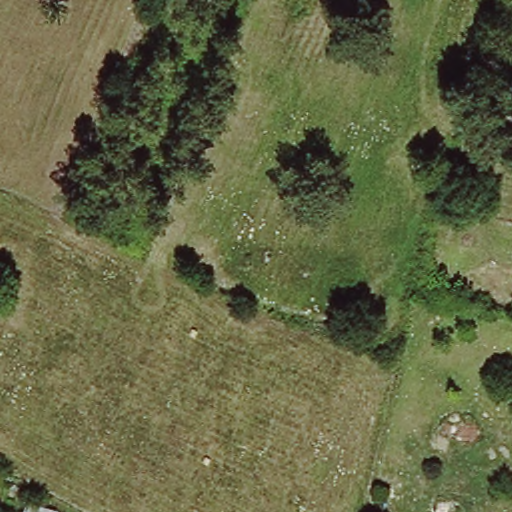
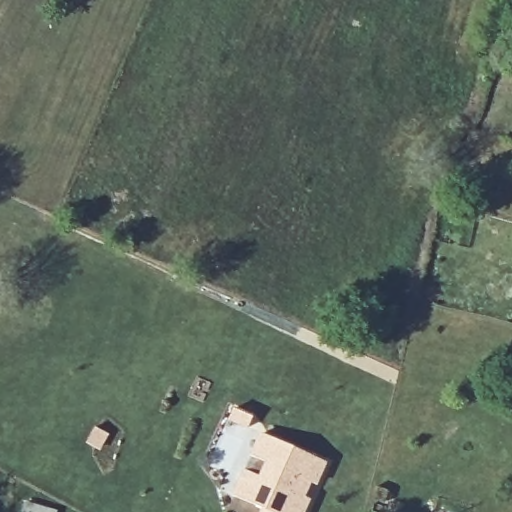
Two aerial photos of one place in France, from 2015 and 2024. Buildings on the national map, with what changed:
new [(327,464),(306,512),(260,512),(262,510),(233,498),(245,472),(259,478),(266,463),(251,457),(260,435),(327,464)]

